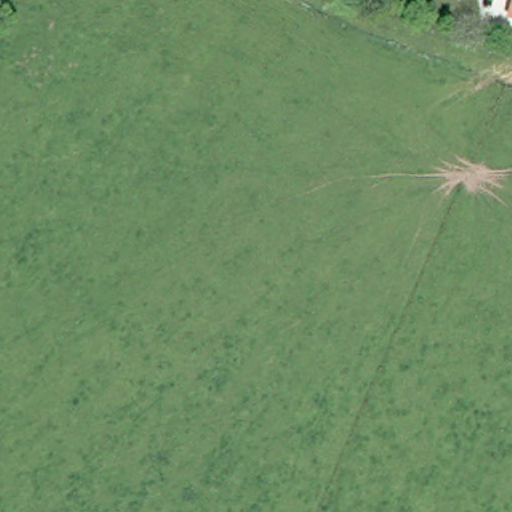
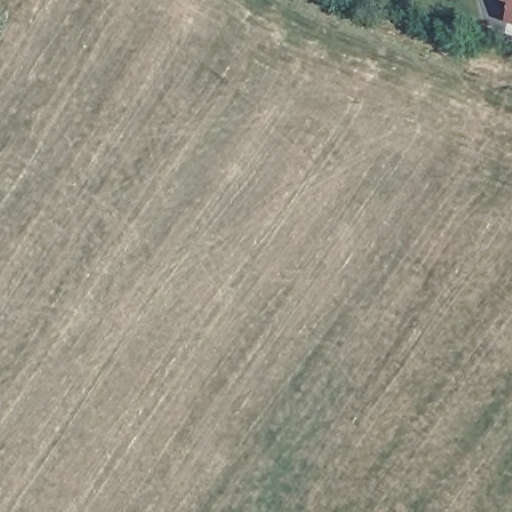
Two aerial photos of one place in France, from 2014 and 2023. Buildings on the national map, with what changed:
unchanged [(507,21),(512,6),(512,23),(507,21)]

